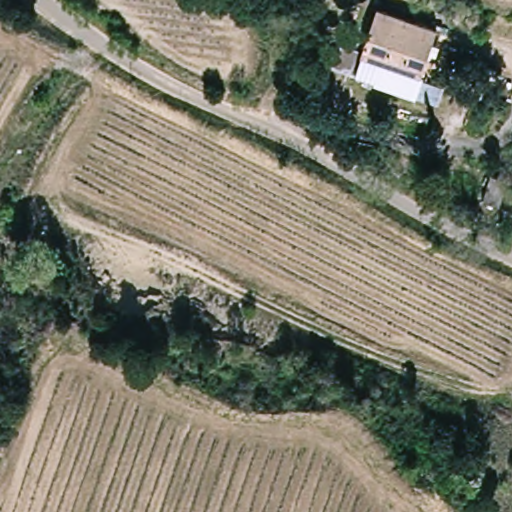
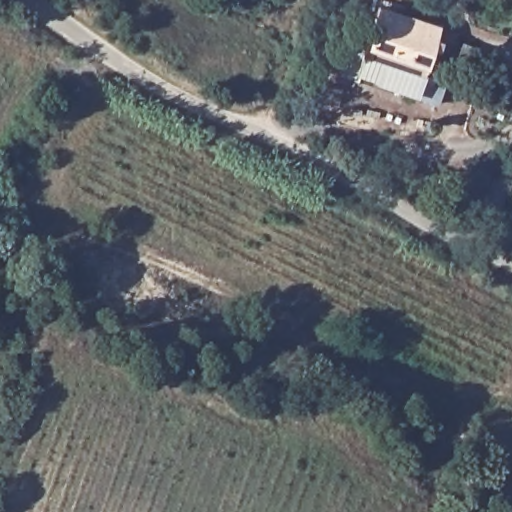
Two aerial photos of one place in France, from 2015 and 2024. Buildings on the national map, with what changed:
unchanged [(376,9),(433,26),(416,95),(360,78),(376,9)]
unchanged [(484,178),(502,186),(492,211),(475,206),(484,178)]

